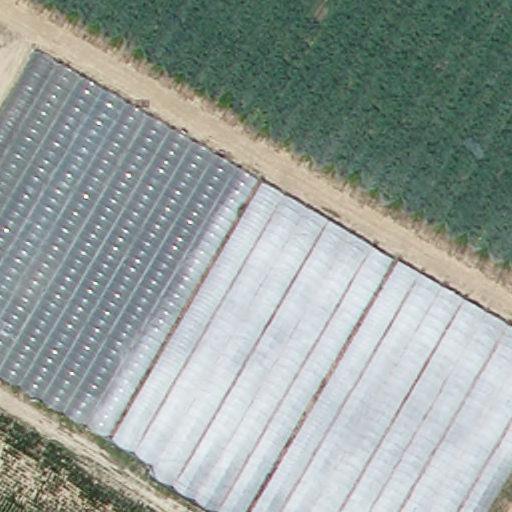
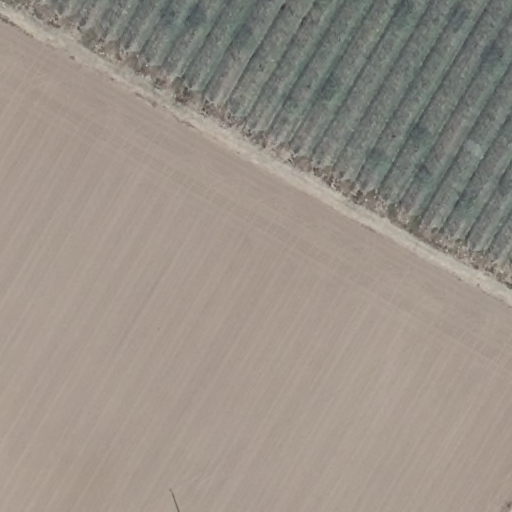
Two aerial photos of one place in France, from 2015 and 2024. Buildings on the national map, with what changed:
demolished [(230,512),(0,373),(0,23),(512,321),(512,459),(480,512),(230,512)]

